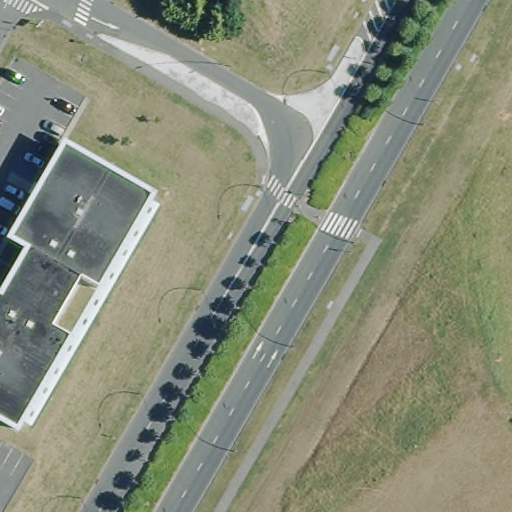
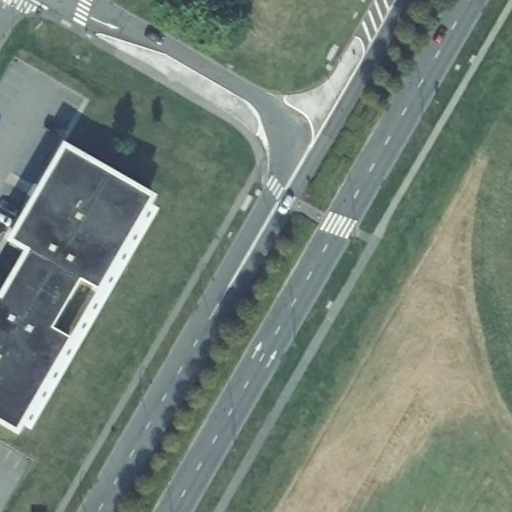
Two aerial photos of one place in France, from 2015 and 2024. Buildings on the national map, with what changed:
unchanged [(77,281),(49,329),(66,340),(12,432),(0,425),(0,296),(25,252),(8,241),(62,150),(148,200),(95,291),(77,281)]

